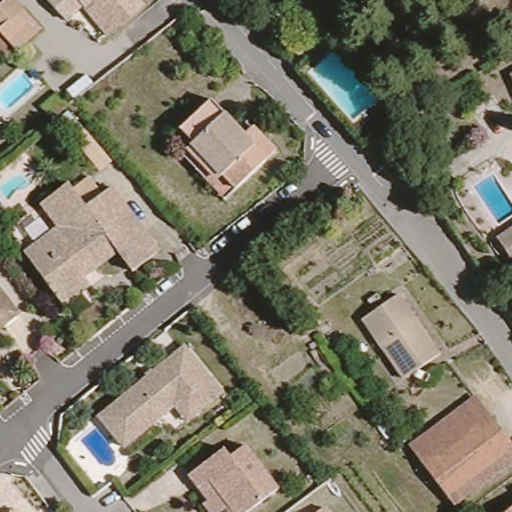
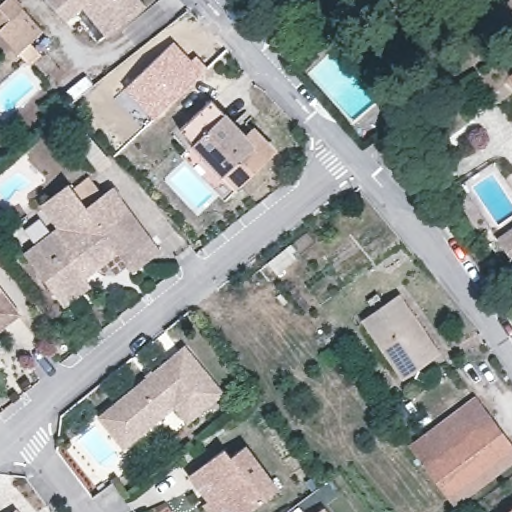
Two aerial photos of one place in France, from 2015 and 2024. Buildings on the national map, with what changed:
unchanged [(38,26),(23,42),(34,58),(25,66),(22,64),(0,39),(0,3),(5,0),(12,0),(38,26)]
unchanged [(87,3),(80,7),(73,0),(130,0),(137,7),(110,28),(99,37),(81,17),(93,9),(87,3)]
new [(173,40),(191,57),(195,54),(208,68),(153,121),(143,112),(123,88),(173,40)]
unchanged [(503,81),(512,74),(512,95),(503,81)]
unchanged [(39,99),(58,83),(69,95),(70,97),(50,113),(39,99)]
unchanged [(177,127),(209,97),(241,130),(251,121),(275,147),(266,156),(234,186),(225,195),(181,149),(190,141),(177,127)]
unchanged [(135,272),(132,268),(119,270),(110,257),(60,190),(67,185),(84,205),(109,187),(145,235),(159,252),(152,258),(135,272)]
unchanged [(57,228),(40,207),(60,190),(110,257),(83,277),(88,286),(82,291),(62,307),(39,275),(22,255),(35,245),(57,228)]
unchanged [(324,217),(334,237),(281,273),(266,257),(324,217)]
unchanged [(512,231),(512,258),(505,248),(499,240),(512,231)]
unchanged [(1,321),(0,322),(0,286),(18,309),(1,321)]
unchanged [(401,381),(357,323),(394,297),(438,356),(401,381)]
unchanged [(169,411),(118,452),(92,422),(177,349),(215,396),(192,415),(181,425),(169,411)]
unchanged [(462,401),(501,446),(443,495),(405,450),(462,401)]
unchanged [(443,495),(501,446),(509,458),(454,506),(443,495)]
unchanged [(204,502),(193,488),(184,476),(218,448),(226,458),(240,447),(272,490),(244,512),(200,512),(196,506),(204,502)]
unchanged [(508,512),(512,508),(512,512),(508,512)]
unchanged [(11,512),(10,512),(11,511),(11,512)]

